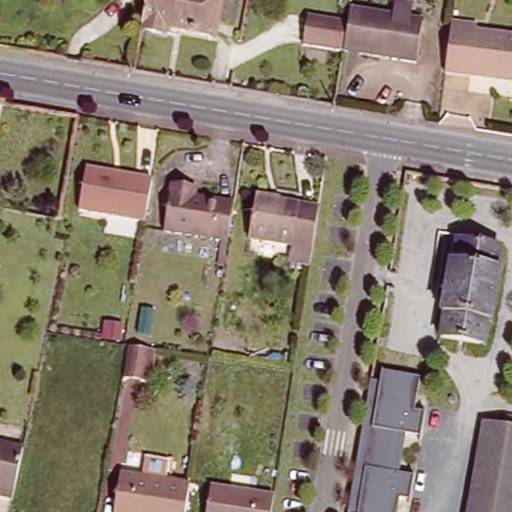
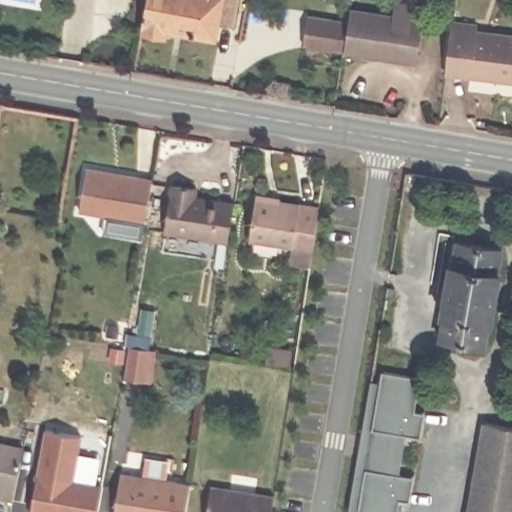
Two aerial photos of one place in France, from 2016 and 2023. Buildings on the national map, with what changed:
unchanged [(148,0),(243,0),(240,21),(222,19),(220,33),(197,31),(197,29),(167,24),(166,32),(143,29),(148,0)]
unchanged [(346,48),(351,19),(352,10),(393,15),(395,0),(399,0),(415,3),(412,20),(423,21),(415,59),(346,50),(346,48)]
unchanged [(351,19),(346,48),(305,43),(309,13),(351,19)]
unchanged [(483,22),(482,31),(512,37),(512,81),(450,68),(458,18),(483,22)]
unchanged [(118,173),(110,216),(80,213),(88,169),(118,173)]
unchanged [(157,179),(150,221),(110,216),(118,173),(157,179)]
unchanged [(215,262),(220,240),(164,232),(172,187),(195,190),(195,198),(233,204),(227,241),(223,265),(215,262)]
unchanged [(305,204),(305,207),(323,209),(313,267),(290,264),(295,246),(252,239),(261,197),(305,204)]
unchanged [(463,243),(505,251),(486,344),(445,336),(463,243)]
unchanged [(153,378),(148,377),(127,373),(133,340),(155,344),(160,345),(153,378)]
unchanged [(420,377),(415,408),(422,411),(417,437),(407,435),(403,453),(417,455),(408,500),(395,498),(393,512),(358,512),(383,368),(420,377)]
unchanged [(512,512),(470,512),(492,407),(512,410),(512,512)]
new [(44,430),(82,436),(74,480),(102,484),(97,512),(29,512),(44,430)]
unchanged [(23,449),(12,500),(0,498),(0,443),(23,449)]
unchanged [(120,475),(189,487),(184,512),(112,512),(120,475)]
unchanged [(273,512),(209,512),(213,484),(277,493),(273,512)]

